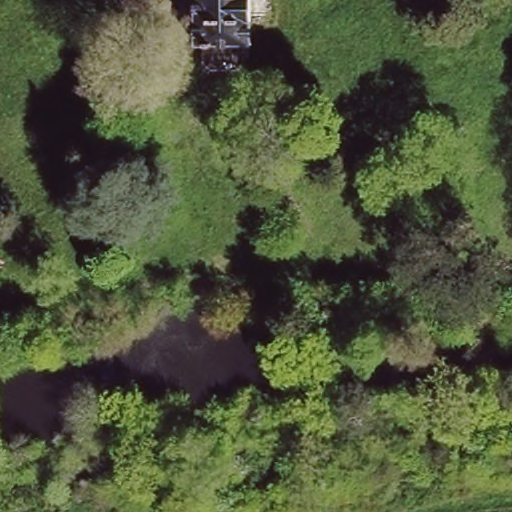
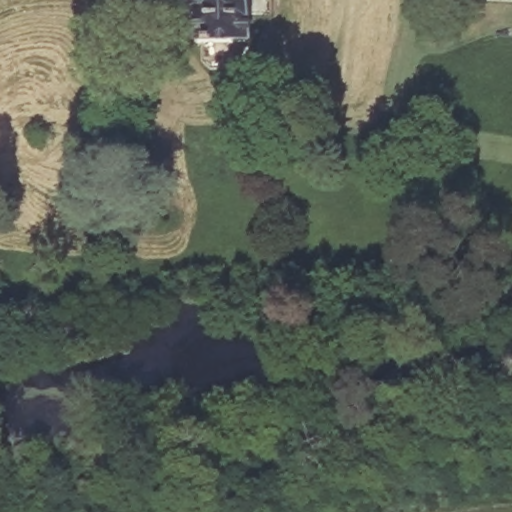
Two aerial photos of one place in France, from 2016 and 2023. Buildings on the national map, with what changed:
unchanged [(248,0),(249,28),(241,31),(241,60),(188,60),(189,0),(248,0)]

